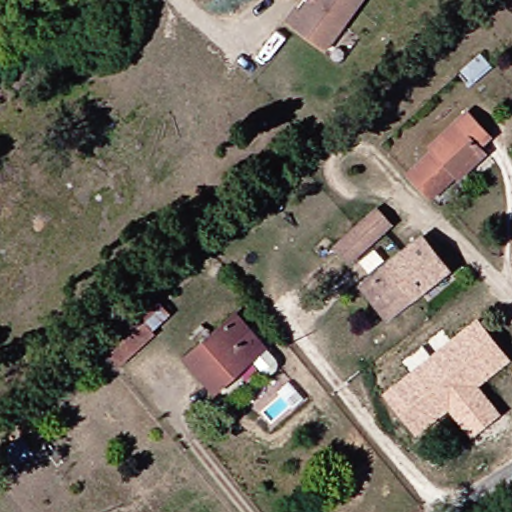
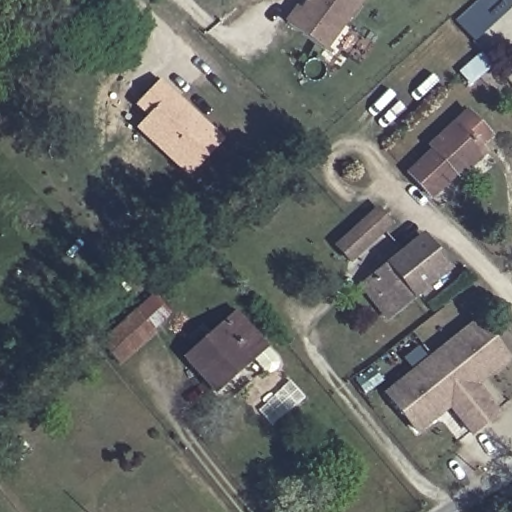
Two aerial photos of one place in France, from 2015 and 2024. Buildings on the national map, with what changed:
unchanged [(326,51),(288,23),(298,10),(301,13),(311,0),(364,0),(326,51)]
new [(512,6),(496,21),(474,42),(455,21),(478,1),(480,0),(512,0),(512,6)]
unchanged [(460,73),(481,55),(488,64),(467,82),(460,73)]
new [(137,107),(162,81),(224,141),(188,178),(135,129),(147,117),(137,107)]
unchanged [(399,174),(425,150),(421,146),(457,112),(480,136),(468,146),(475,153),(453,172),(451,169),(421,197),(399,174)]
unchanged [(327,241),(367,204),(381,219),(341,256),(327,241)]
unchanged [(351,287),(365,276),(412,238),(428,256),(439,269),(425,281),(390,309),(377,319),(351,287)]
unchanged [(120,364),(102,343),(135,313),(150,299),(165,315),(150,329),(153,333),(120,364)]
unchanged [(176,358),(226,314),(251,342),(255,347),(244,358),(206,391),(176,358)]
unchanged [(512,360),(479,387),(500,411),(470,436),(447,411),(417,436),(382,394),(477,316),(512,360)]

